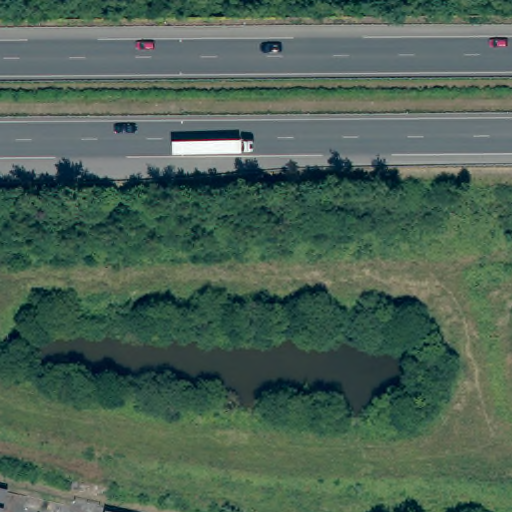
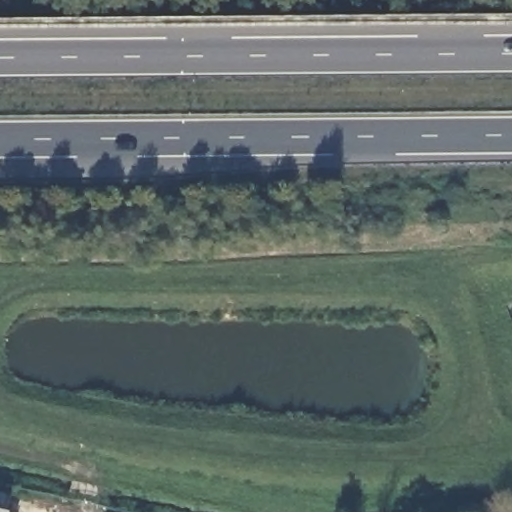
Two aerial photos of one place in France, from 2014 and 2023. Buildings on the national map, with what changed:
unchanged [(3,498),(0,510),(0,497),(3,498)]

